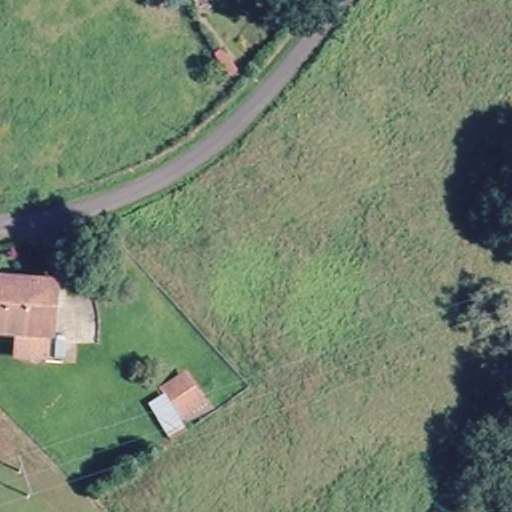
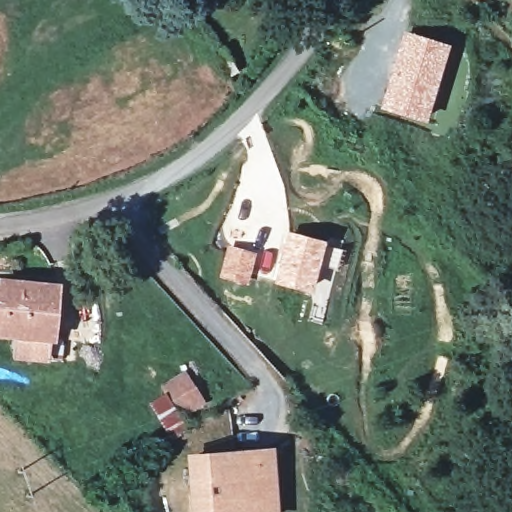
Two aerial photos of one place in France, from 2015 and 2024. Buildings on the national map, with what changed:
new [(449,45),(426,123),(378,109),(401,30),(449,45)]
new [(325,241),(311,293),(273,285),(287,231),(325,241)]
unchanged [(22,290),(46,292),(51,293),(47,344),(44,344),(42,365),(10,362),(12,341),(0,340),(0,288),(22,290)]
unchanged [(174,427),(156,399),(178,385),(196,413),(174,427)]
new [(272,447),(278,512),(189,512),(185,454),(272,447)]

